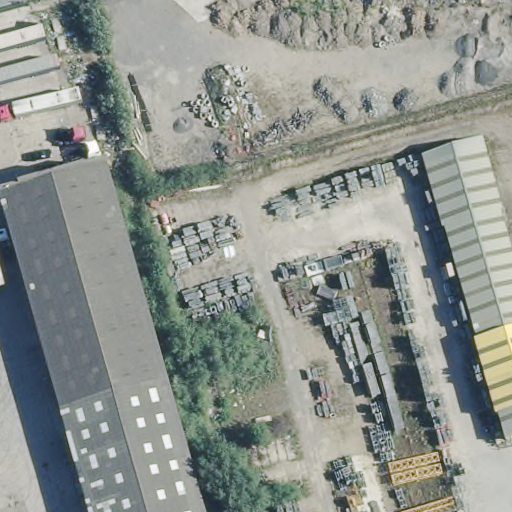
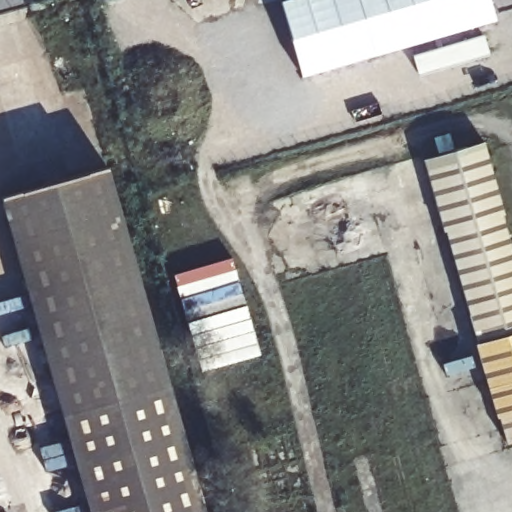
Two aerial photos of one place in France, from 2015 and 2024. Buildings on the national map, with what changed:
new [(490,0),(495,20),(302,77),(280,2),(287,0),(490,0)]
new [(484,35),(490,54),(419,76),(413,56),(484,35)]
unchanged [(505,210),(500,211),(512,248),(512,437),(507,439),(500,413),(495,413),(460,280),(446,227),(441,227),(421,156),(483,139),(505,210)]
unchanged [(106,169),(202,512),(89,512),(83,493),(0,197),(106,169)]
demolished [(397,448),(416,512),(339,512),(327,467),(397,448)]

